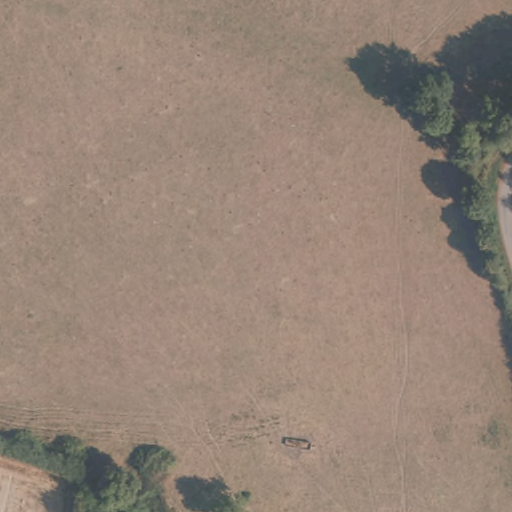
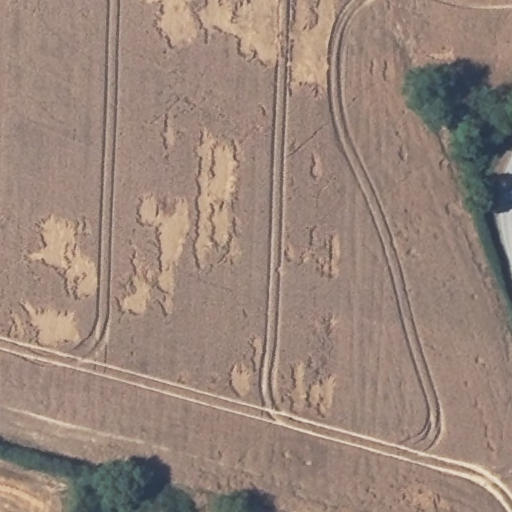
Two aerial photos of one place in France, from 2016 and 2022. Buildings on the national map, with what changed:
[]

